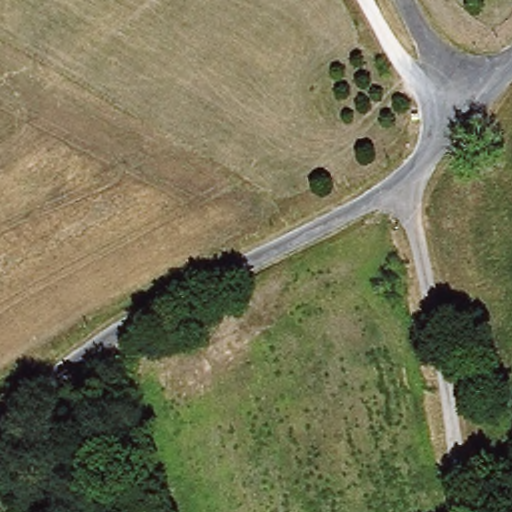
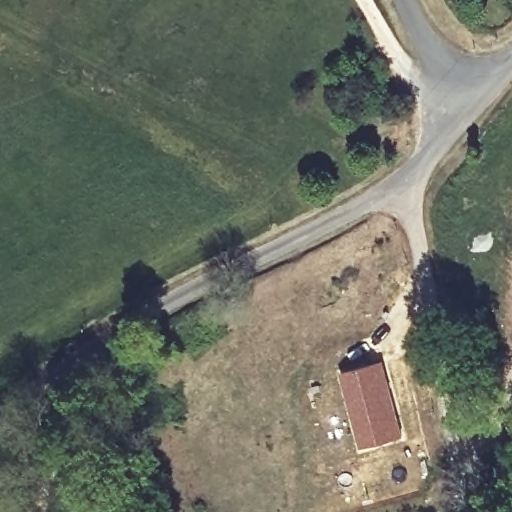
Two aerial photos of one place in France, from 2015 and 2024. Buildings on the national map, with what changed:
unchanged [(395,301),(390,279),(406,274),(412,297),(395,301)]
new [(382,360),(404,438),(357,451),(338,372),(382,360)]

